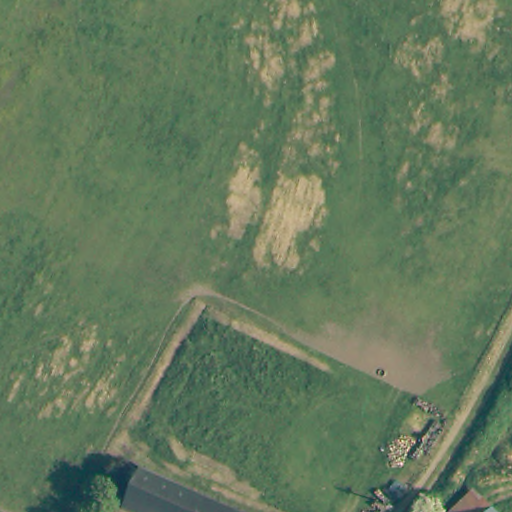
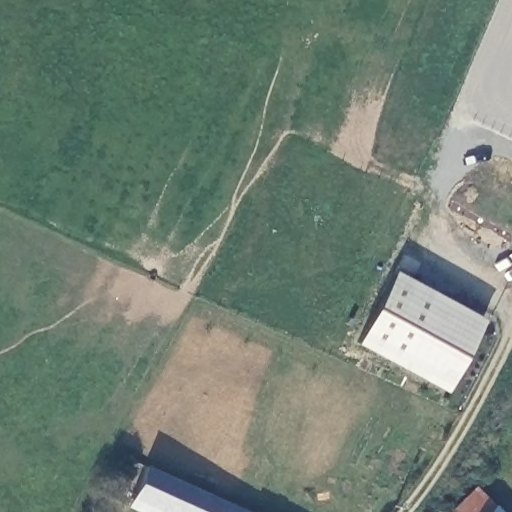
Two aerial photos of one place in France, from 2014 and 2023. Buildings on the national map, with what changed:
new [(354,343),(394,269),(485,318),(446,391),(354,343)]
unchanged [(208,492),(198,512),(141,512),(125,505),(144,464),(208,492)]
unchanged [(473,484),(494,508),(490,512),(444,512),(473,484)]
unchanged [(208,492),(251,512),(198,512),(208,492)]
new [(495,507),(500,512),(490,512),(495,507)]

